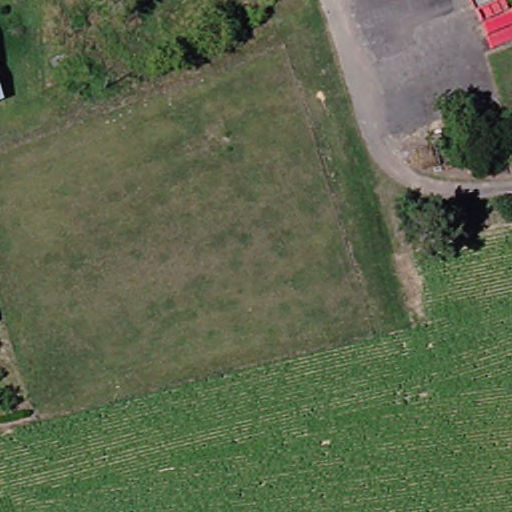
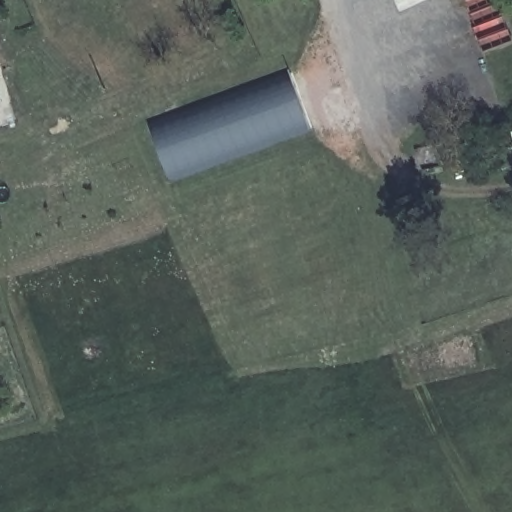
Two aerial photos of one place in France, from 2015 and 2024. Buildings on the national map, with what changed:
new [(309,128),(173,182),(154,130),(289,76),(309,128)]
unchanged [(0,92),(0,82),(4,91),(0,92)]
unchanged [(507,166),(505,160),(499,160),(497,151),(512,147),(512,164),(507,166)]

